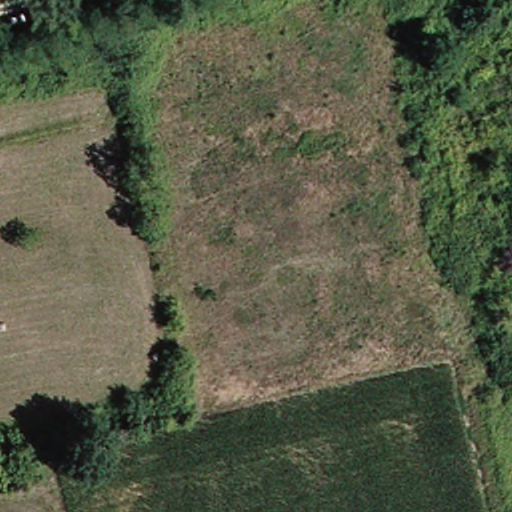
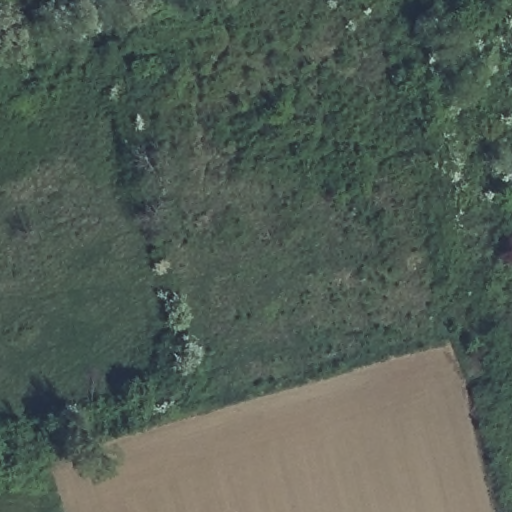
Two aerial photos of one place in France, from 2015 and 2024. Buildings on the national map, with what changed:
[]

